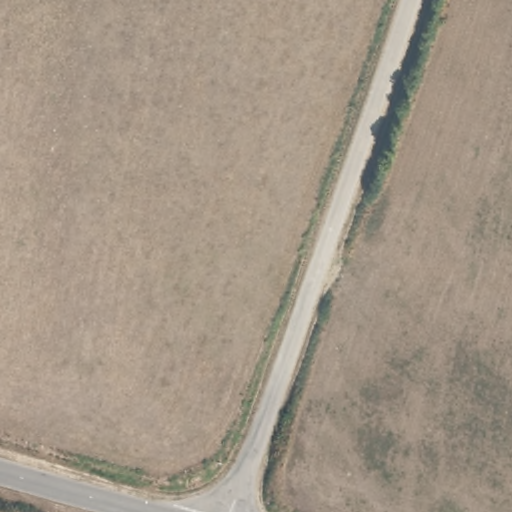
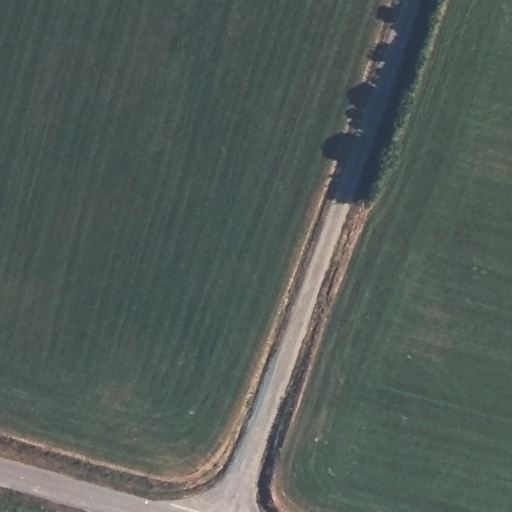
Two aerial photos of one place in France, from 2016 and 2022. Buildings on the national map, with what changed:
[]

